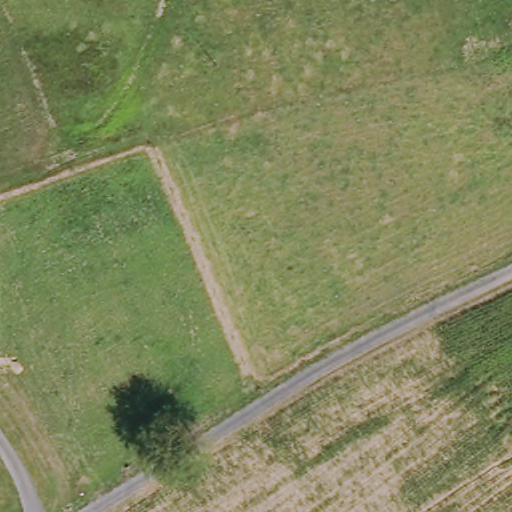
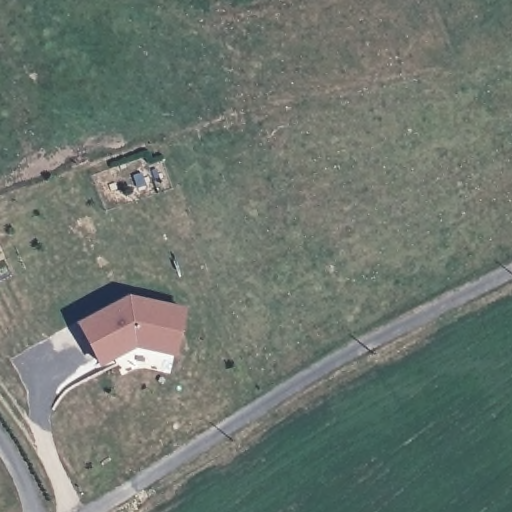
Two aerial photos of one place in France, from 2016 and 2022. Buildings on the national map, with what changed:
new [(176,356),(136,347),(101,365),(78,322),(129,295),(186,307),(176,356)]

